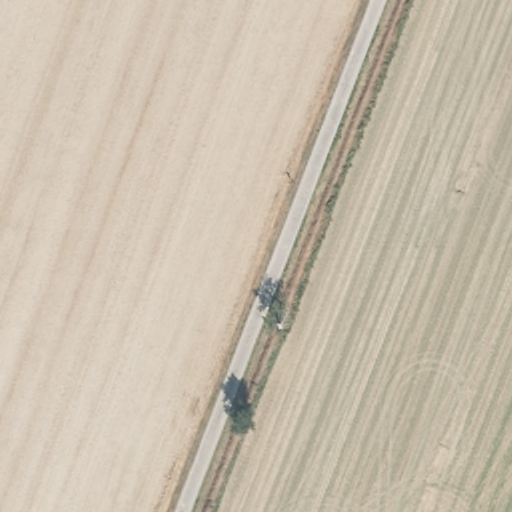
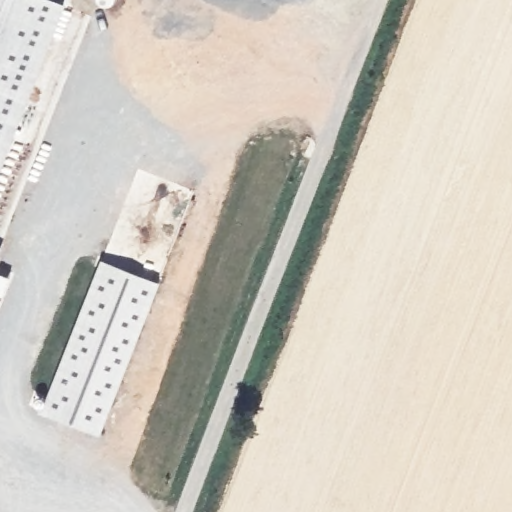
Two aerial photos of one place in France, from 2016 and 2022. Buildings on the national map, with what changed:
new [(0,0),(58,0),(66,3),(0,168),(0,0)]
new [(0,253),(0,246),(2,247),(0,253)]
new [(100,436),(41,413),(100,259),(160,282),(100,436)]

